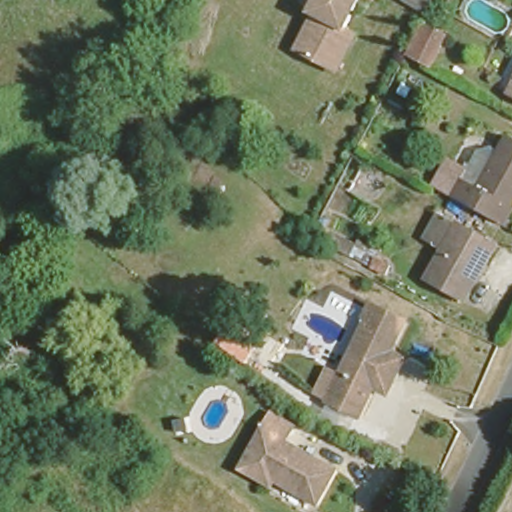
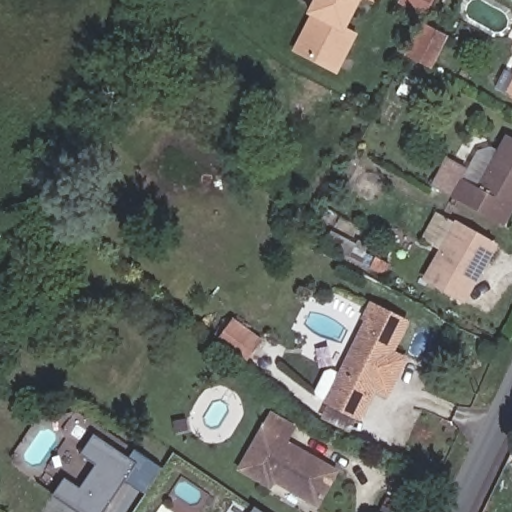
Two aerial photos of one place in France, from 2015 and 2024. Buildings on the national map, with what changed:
unchanged [(293,52),(313,12),(306,9),(311,0),(354,0),(343,24),(355,31),(335,72),(318,64),(293,52)]
unchanged [(410,0),(440,0),(433,14),(408,2),(410,0)]
unchanged [(405,53),(421,21),(446,34),(430,66),(405,53)]
unchanged [(430,189),(447,157),(469,169),(477,153),(492,147),(498,151),(505,137),(512,140),(512,218),(507,228),(430,189)]
unchanged [(425,276),(452,222),(493,243),(465,294),(425,276)]
unchanged [(325,366),(340,373),(370,319),(365,317),(372,300),(408,320),(395,348),(401,351),(411,357),(391,394),(381,388),(373,384),(357,415),(326,399),(329,395),(313,388),(325,366)]
unchanged [(247,353),(244,350),(224,331),(231,319),(236,312),(263,332),(247,353)]
unchanged [(317,504),(281,485),(284,479),(270,472),(265,483),(230,466),(261,408),(286,422),(277,439),(335,471),(317,504)]
new [(71,433),(89,443),(95,435),(129,458),(135,450),(160,468),(145,492),(125,478),(103,512),(78,512),(53,495),(36,485),(71,433)]
new [(262,512),(252,512),(255,508),(262,512)]

